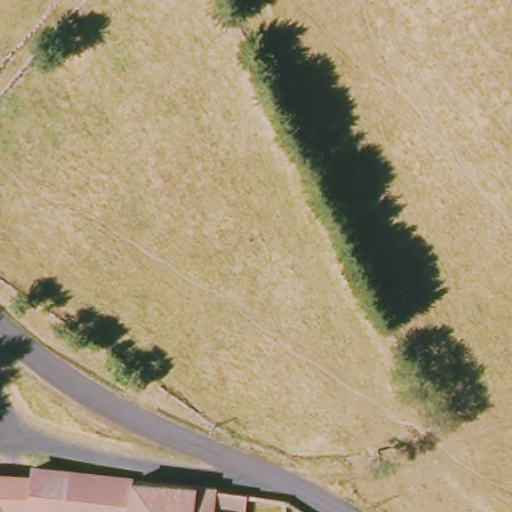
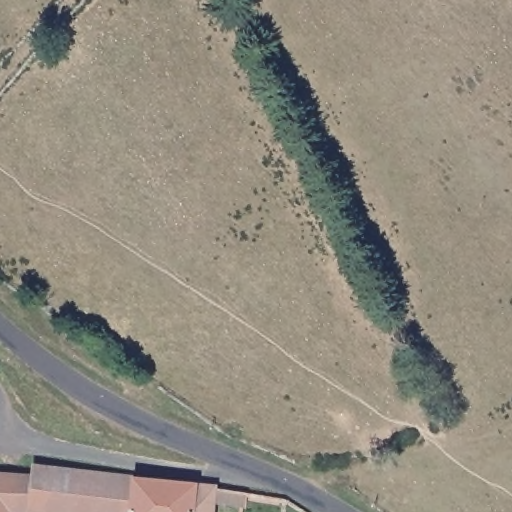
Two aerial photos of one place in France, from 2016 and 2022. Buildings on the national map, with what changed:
unchanged [(20,512),(26,469),(26,462),(202,489),(198,512),(20,512)]
unchanged [(20,512),(0,512),(0,466),(26,469),(20,512)]

